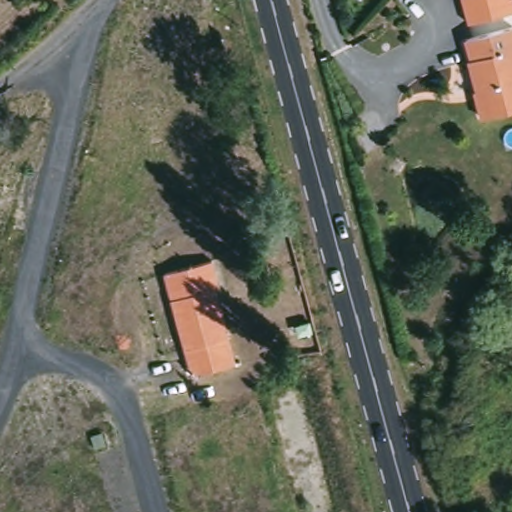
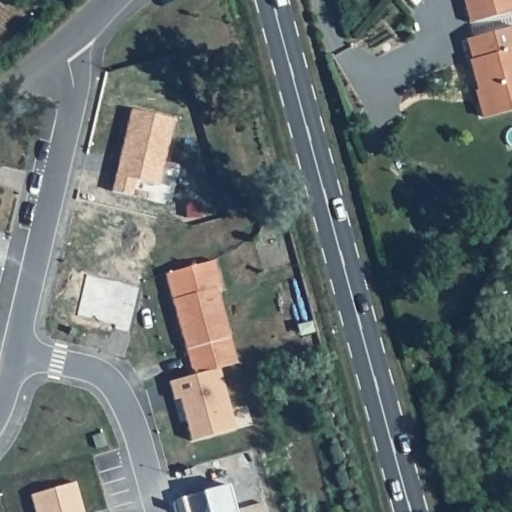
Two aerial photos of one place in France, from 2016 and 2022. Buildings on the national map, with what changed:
unchanged [(512,14),(468,26),(462,0),(512,0),(512,14)]
unchanged [(512,115),(482,124),(477,103),(480,101),(470,66),(472,65),(467,44),(512,32),(512,115)]
new [(130,110),(172,120),(157,186),(134,180),(130,196),(111,192),(130,110)]
unchanged [(213,266),(221,294),(217,295),(236,369),(193,380),(166,279),(213,266)]
new [(172,400),(168,382),(192,375),(193,380),(218,373),(233,430),(190,440),(179,399),(172,400)]
new [(34,512),(30,494),(74,482),(82,512),(34,512)]

